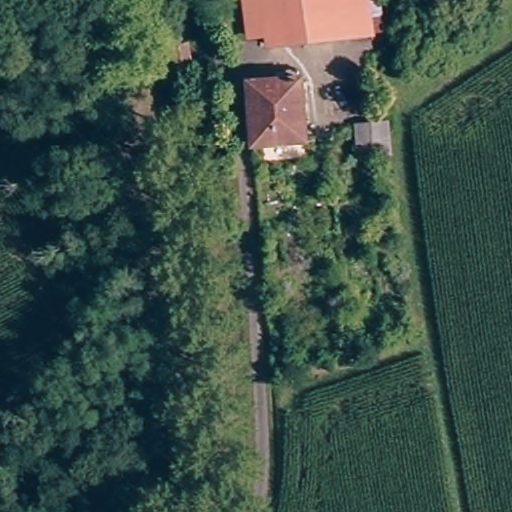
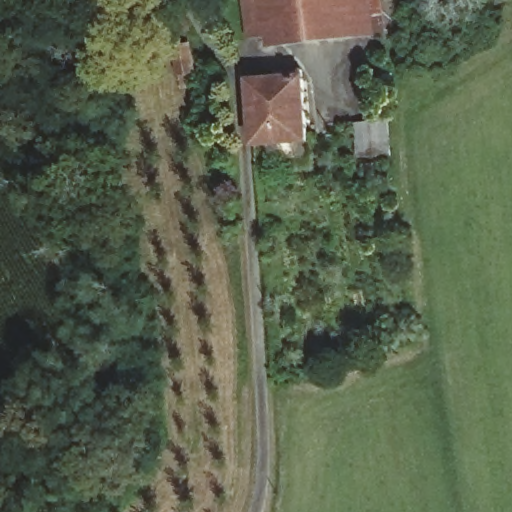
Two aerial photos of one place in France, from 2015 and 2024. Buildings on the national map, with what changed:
unchanged [(281,32),(258,32),(256,0),(380,0),(383,35),(283,42),(281,32)]
unchanged [(170,56),(169,29),(188,28),(188,56),(170,56)]
unchanged [(247,82),(283,81),(283,71),(302,70),(308,149),(250,154),(247,82)]
unchanged [(391,130),(381,132),(382,140),(365,142),(364,124),(363,111),(388,109),(391,130)]

